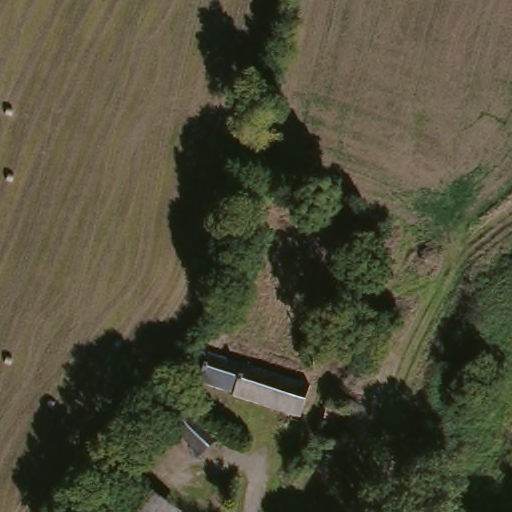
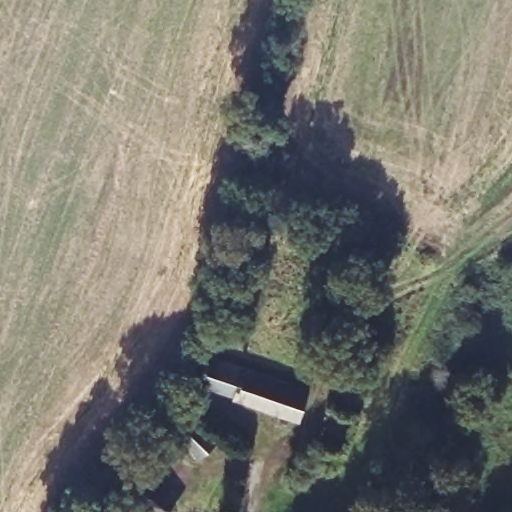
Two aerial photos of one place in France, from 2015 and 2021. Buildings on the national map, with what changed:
unchanged [(227,402),(190,392),(192,382),(182,380),(187,359),(236,372),(227,402)]
unchanged [(295,422),(244,411),(226,406),(227,402),(236,372),(306,391),(295,422)]
unchanged [(121,473),(179,512),(95,512),(121,473)]

